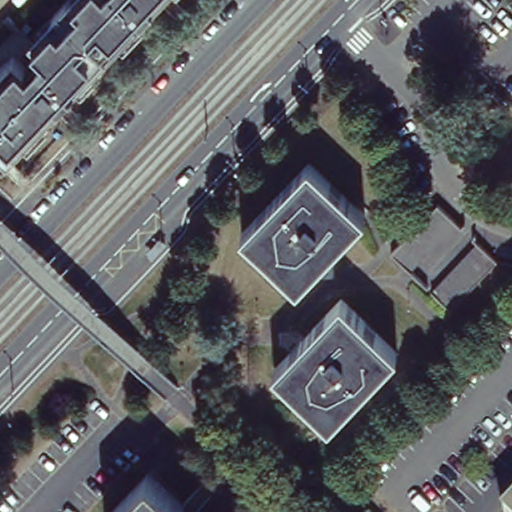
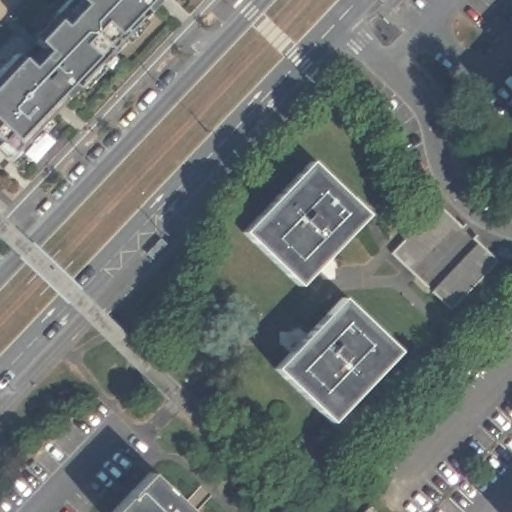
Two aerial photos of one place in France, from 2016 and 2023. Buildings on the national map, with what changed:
unchanged [(17,140),(0,125),(0,77),(75,0),(156,0),(17,140)]
unchanged [(366,215),(298,286),(242,232),(310,161),(366,215)]
unchanged [(396,254),(443,205),(462,222),(415,271),(396,254)]
unchanged [(432,292),(478,244),(497,261),(450,310),(432,292)]
unchanged [(402,351),(335,422),(279,369),(347,298),(402,351)]
unchanged [(111,512),(148,473),(189,512),(111,512)]
unchanged [(364,512),(368,507),(374,512),(364,512)]

